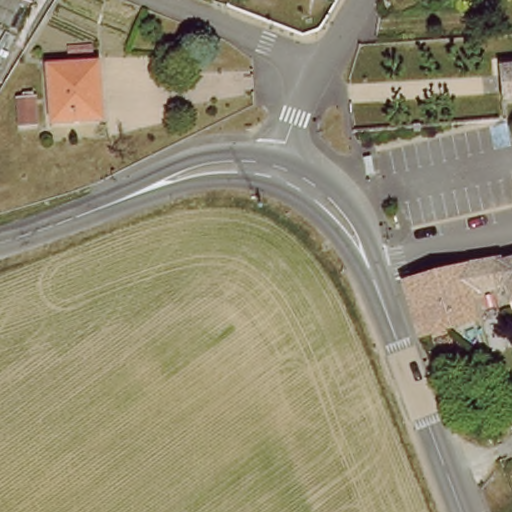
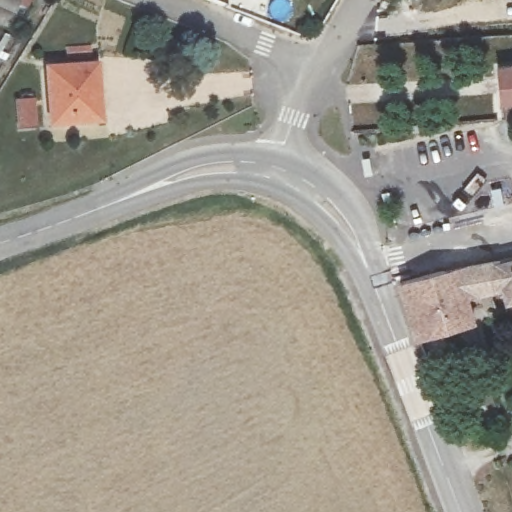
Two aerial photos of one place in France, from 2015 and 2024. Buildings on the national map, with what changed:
unchanged [(512,0),(512,2),(508,1),(507,0),(512,0)]
unchanged [(108,79),(98,80),(101,118),(58,125),(53,67),(104,60),(108,79)]
unchanged [(500,69),(512,68),(512,98),(502,99),(500,69)]
unchanged [(24,99),(39,97),(41,122),(26,124),(24,99)]
unchanged [(483,312),(424,327),(407,275),(506,252),(512,251),(512,279),(478,289),(483,312)]

